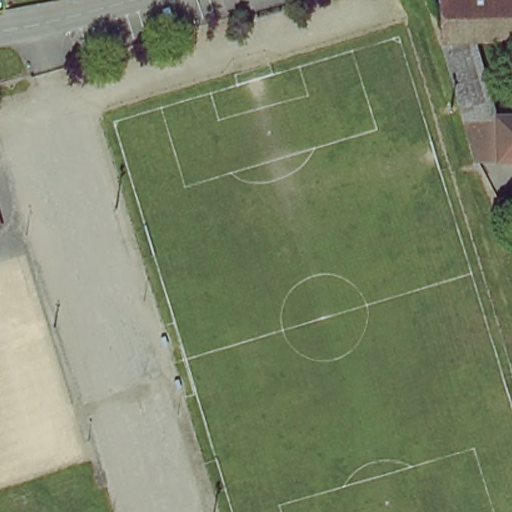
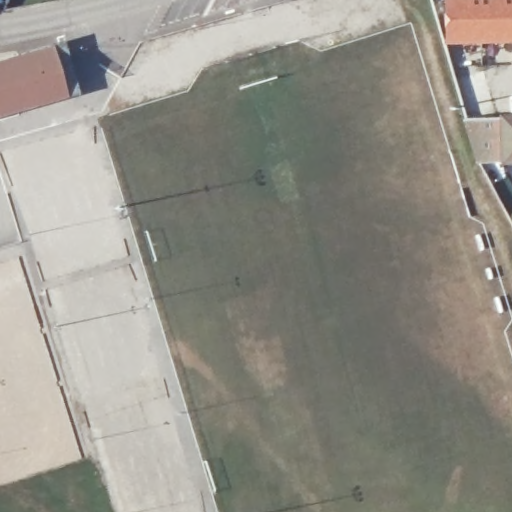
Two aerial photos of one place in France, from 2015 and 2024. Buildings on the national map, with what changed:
unchanged [(475,31),(444,31),(442,0),(512,0),(512,30),(475,31)]
unchanged [(442,31),(444,31),(475,31),(498,109),(464,110),(442,31)]
new [(52,45),(68,96),(0,116),(0,60),(52,45)]
unchanged [(512,108),(512,153),(477,154),(464,110),(498,109),(512,108)]

